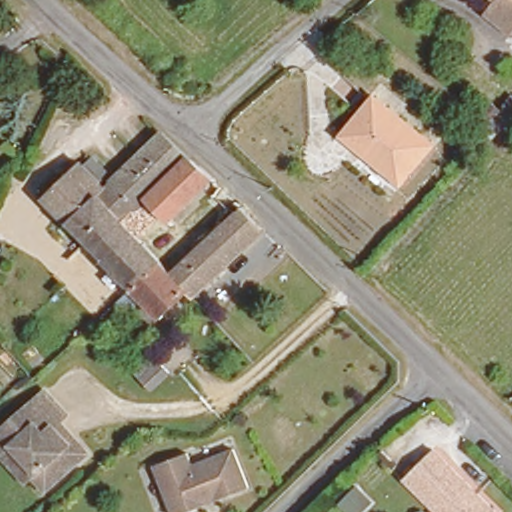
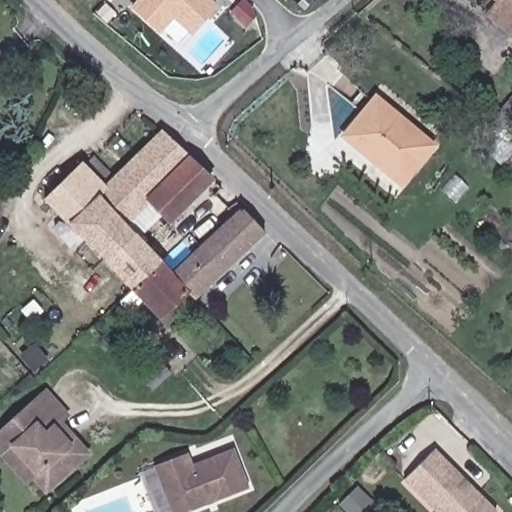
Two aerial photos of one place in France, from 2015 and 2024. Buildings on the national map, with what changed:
new [(140,0),(212,0),(217,5),(193,32),(175,15),(161,31),(134,6),(140,0)]
unchanged [(505,33),(483,16),(495,1),(495,0),(512,0),(512,25),(505,33)]
unchanged [(479,124),(505,94),(512,99),(512,106),(490,132),(479,124)]
unchanged [(370,97),(428,146),(396,184),(338,136),(370,97)]
unchanged [(155,262),(127,287),(58,216),(40,197),(75,162),(78,167),(87,158),(105,176),(100,182),(97,185),(100,187),(146,145),(156,136),(182,159),(143,198),(164,220),(192,249),(167,275),(155,262)]
unchanged [(164,220),(143,198),(182,159),(204,178),(164,220)]
unchanged [(201,240),(226,216),(220,210),(223,207),(212,196),(221,188),(237,204),(232,210),(257,234),(190,300),(184,293),(167,275),(192,249),(201,240)]
unchanged [(184,293),(158,318),(139,300),(125,312),(114,300),(127,287),(155,262),(167,275),(184,293)]
unchanged [(141,389),(123,370),(141,354),(159,372),(141,389)]
unchanged [(0,419),(32,389),(55,413),(48,420),(59,432),(77,451),(35,489),(22,475),(16,480),(0,461),(0,419)]
unchanged [(187,507),(173,512),(166,512),(145,464),(177,451),(183,462),(225,445),(234,465),(241,483),(187,507)]
unchanged [(493,512),(439,512),(404,477),(434,447),(482,496),(496,509),(493,512)]

